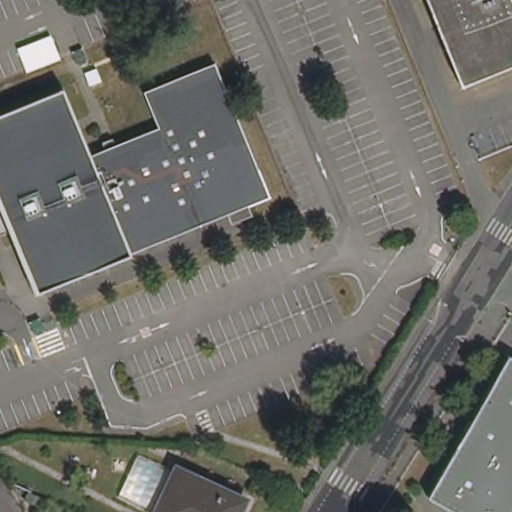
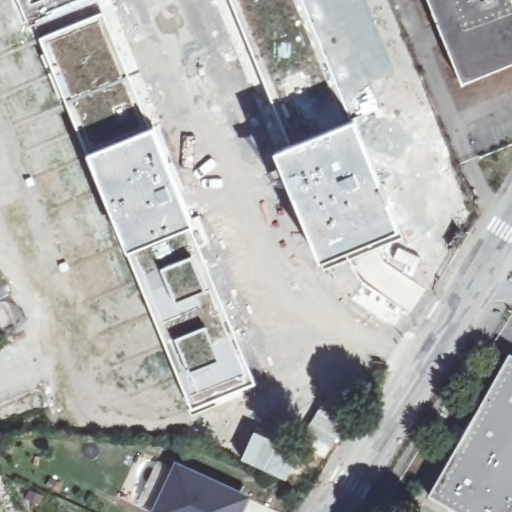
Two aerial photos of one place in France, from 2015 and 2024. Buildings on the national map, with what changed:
new [(28,21),(18,0),(80,0),(28,21)]
new [(252,13),(244,18),(246,24),(241,27),(229,0),(250,0),(252,13)]
new [(397,73),(342,100),(298,0),(367,0),(397,73)]
unchanged [(456,70),(428,0),(512,0),(512,59),(482,72),(460,81),(456,70)]
new [(99,12),(102,19),(55,43),(62,60),(59,61),(64,75),(56,79),(37,37),(99,12)]
demolished [(41,291),(9,213),(8,212),(7,209),(0,192),(0,114),(66,87),(94,155),(162,127),(147,92),(217,62),(273,196),(249,206),(227,215),(156,244),(41,291)]
new [(356,115),(402,236),(322,269),(272,149),(356,115)]
new [(156,122),(185,196),(194,225),(126,253),(86,152),(156,122)]
new [(194,225),(206,264),(257,384),(192,415),(150,308),(126,253),(194,225)]
unchanged [(462,236),(457,245),(449,240),(454,231),(462,236)]
unchanged [(458,512),(429,496),(510,354),(512,355),(512,512),(458,512)]
new [(323,400),(351,417),(325,457),(299,441),(323,400)]
new [(254,429),(300,452),(286,481),(240,459),(254,429)]
unchanged [(146,512),(119,500),(141,451),(179,468),(158,512),(146,512)]
unchanged [(237,512),(158,512),(179,468),(245,497),(237,512)]

